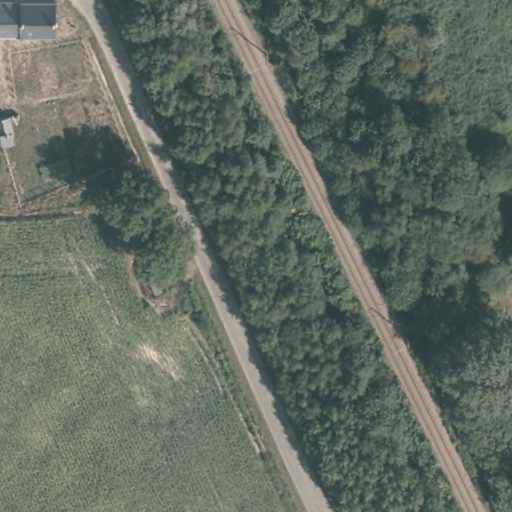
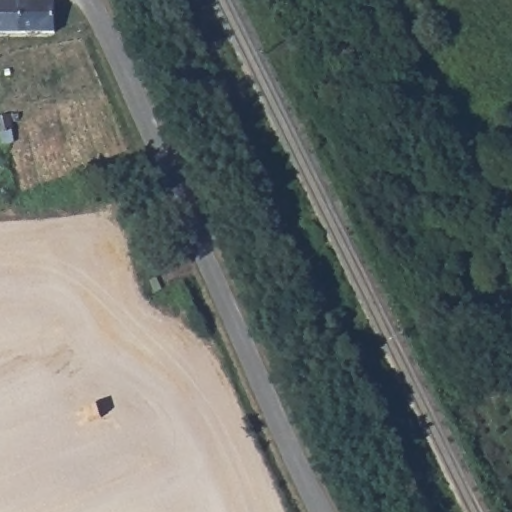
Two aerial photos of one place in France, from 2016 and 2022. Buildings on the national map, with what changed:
unchanged [(57,29),(0,31),(0,0),(56,0),(57,29)]
unchanged [(0,117),(11,114),(16,140),(3,144),(0,132),(0,117)]

